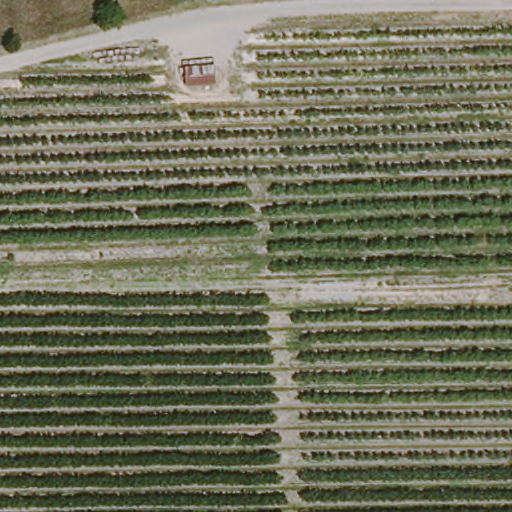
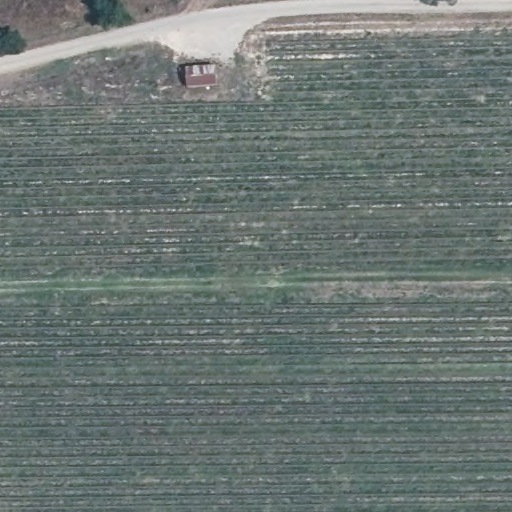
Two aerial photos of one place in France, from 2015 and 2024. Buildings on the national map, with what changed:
unchanged [(219,63),(223,87),(186,91),(184,68),(219,63)]

